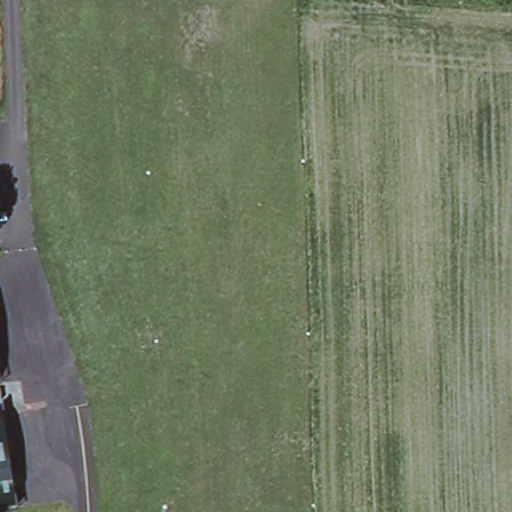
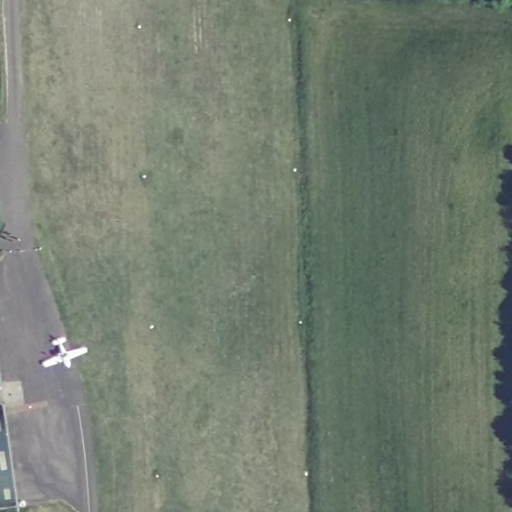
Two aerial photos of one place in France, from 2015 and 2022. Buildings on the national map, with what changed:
unchanged [(0,501),(0,412),(3,412),(14,499),(0,501)]

